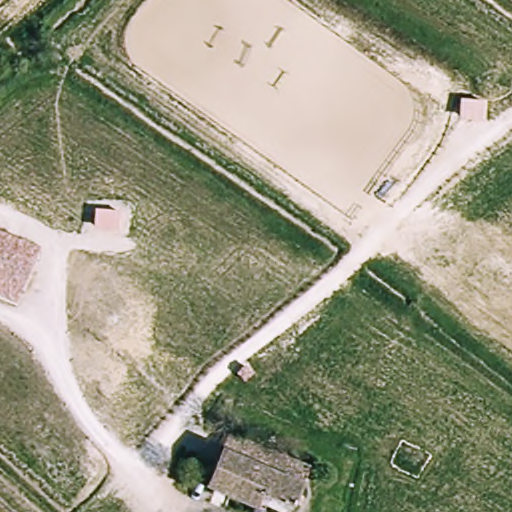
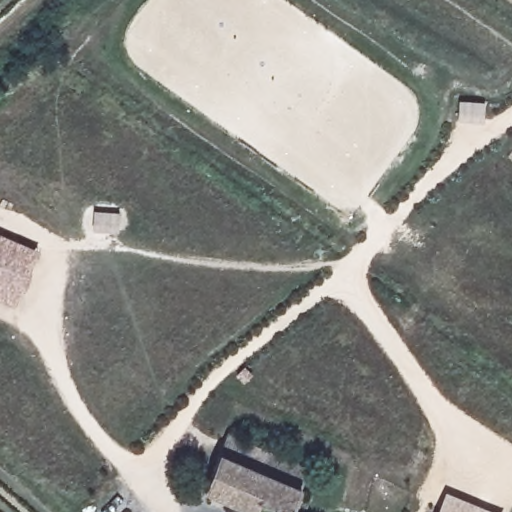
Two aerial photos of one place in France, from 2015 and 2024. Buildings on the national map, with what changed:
unchanged [(93,230),(95,211),(119,214),(117,232),(93,230)]
unchanged [(0,298),(0,233),(39,250),(16,305),(0,298)]
unchanged [(236,450),(317,482),(304,512),(233,512),(214,504),(236,450)]
new [(436,512),(446,490),(497,512),(436,512)]

